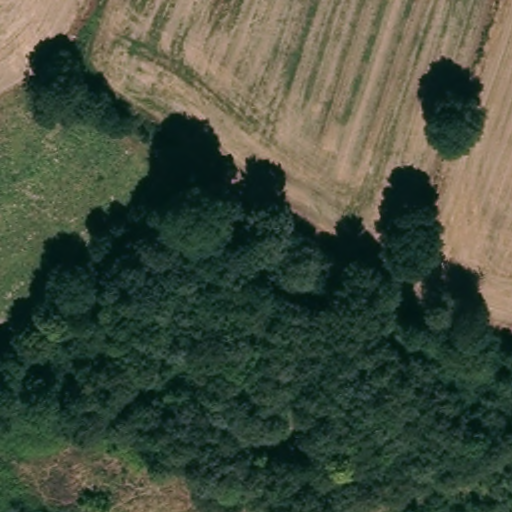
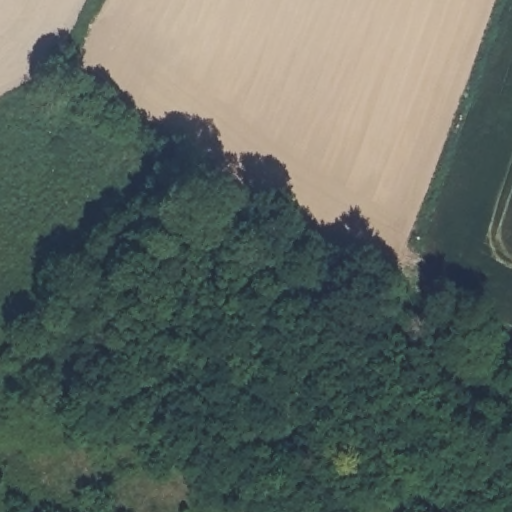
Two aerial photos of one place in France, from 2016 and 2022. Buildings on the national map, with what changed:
[]

